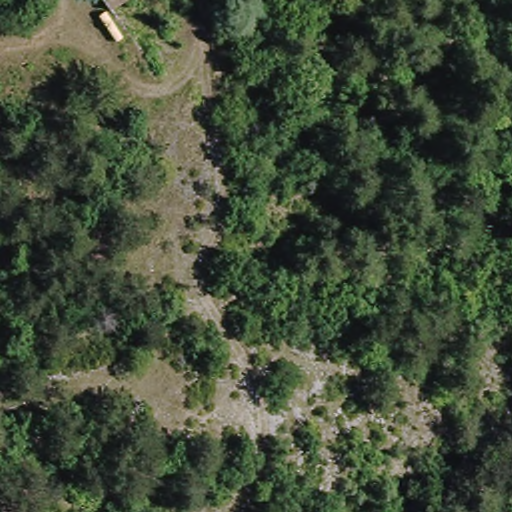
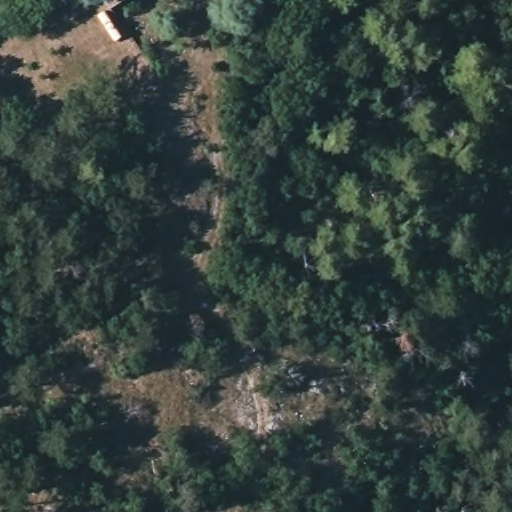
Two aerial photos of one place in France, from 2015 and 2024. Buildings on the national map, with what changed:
unchanged [(118,48),(99,19),(106,14),(96,0),(130,0),(114,12),(130,37),(118,48)]

